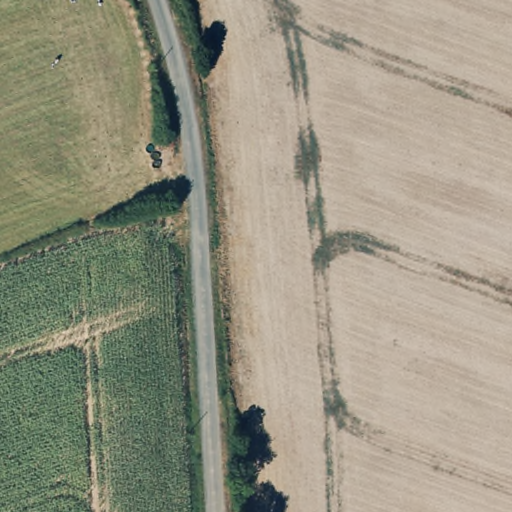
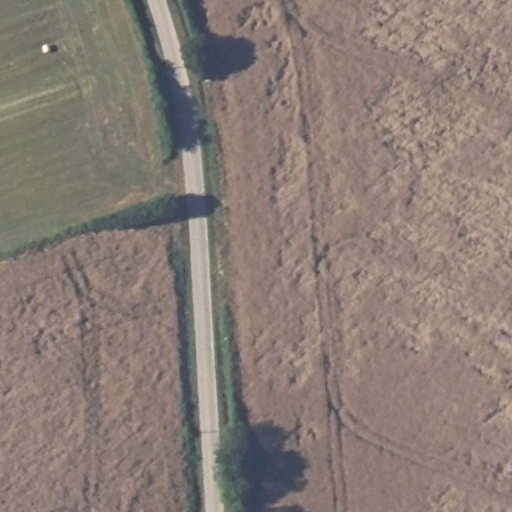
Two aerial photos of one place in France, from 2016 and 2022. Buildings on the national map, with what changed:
[]

